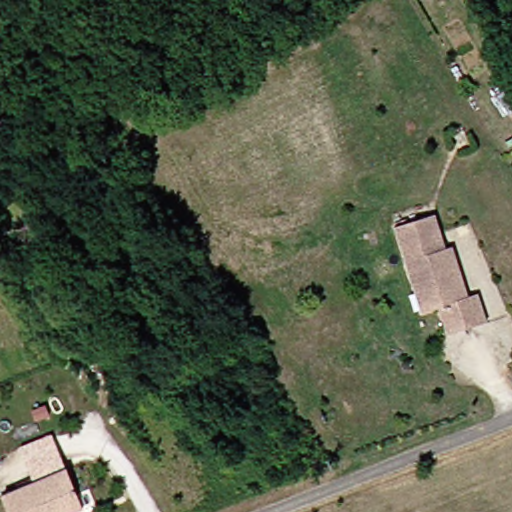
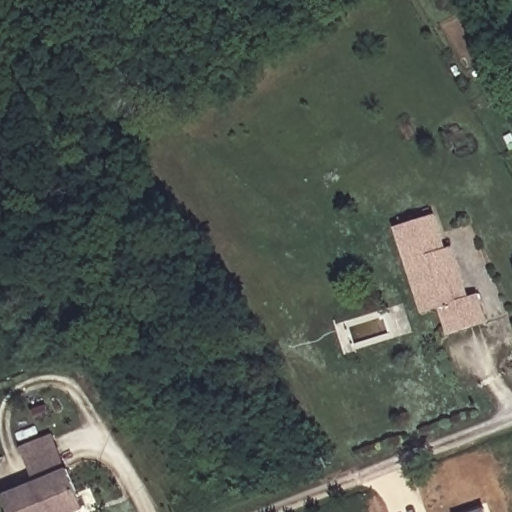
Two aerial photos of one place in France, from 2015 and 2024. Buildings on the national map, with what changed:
unchanged [(395,235),(432,218),(452,257),(460,253),(480,292),(490,287),(502,313),(458,335),(445,307),(454,302),(445,290),(437,287),(423,292),(395,235)]
unchanged [(13,512),(7,497),(72,472),(87,512),(13,512)]
new [(486,512),(467,512),(485,506),(486,512)]

